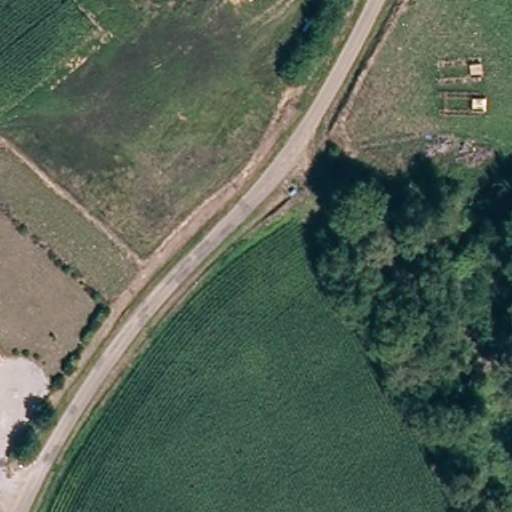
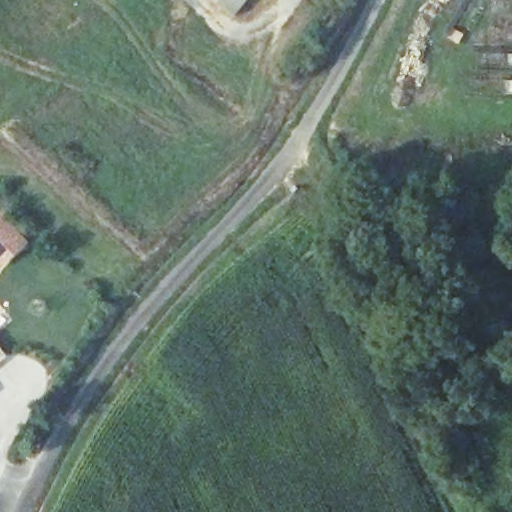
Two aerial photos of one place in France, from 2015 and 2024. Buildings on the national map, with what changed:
new [(231,12),(216,0),(241,0),(231,12)]
new [(0,267),(0,211),(29,241),(0,267)]
unchanged [(0,366),(0,342),(10,357),(0,366)]

